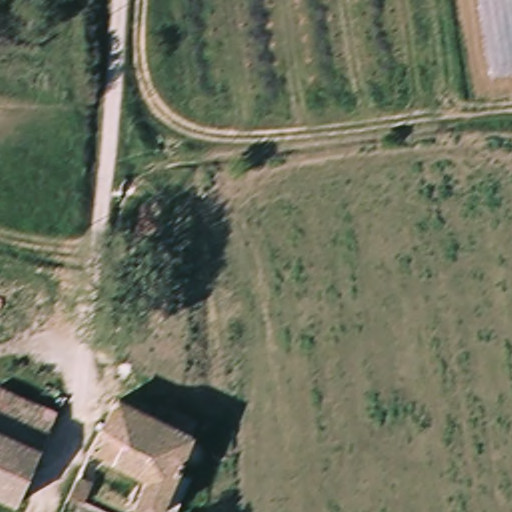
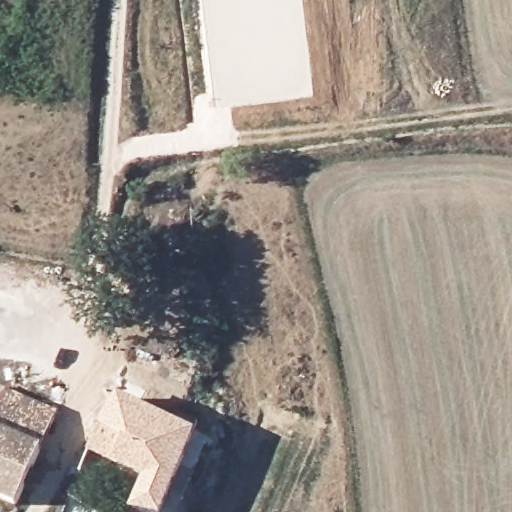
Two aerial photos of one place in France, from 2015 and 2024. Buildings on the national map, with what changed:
unchanged [(0,510),(0,398),(40,418),(26,451),(0,510)]
unchanged [(137,406),(156,417),(153,423),(190,443),(157,512),(138,512),(129,509),(141,481),(88,455),(115,401),(134,412),(137,406)]
unchanged [(87,480),(77,500),(63,494),(73,474),(87,480)]

